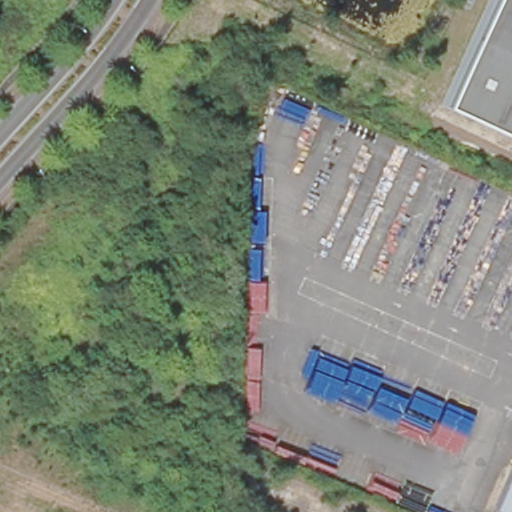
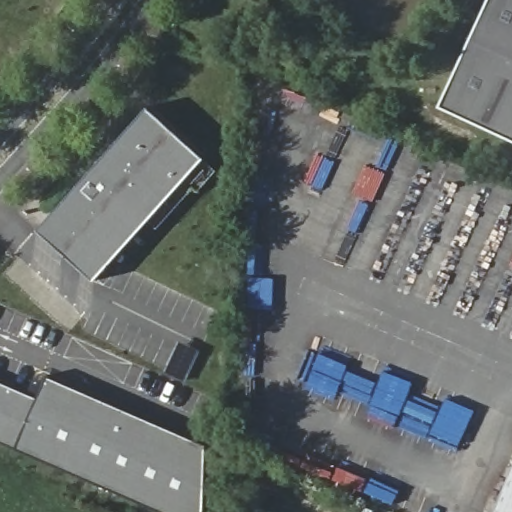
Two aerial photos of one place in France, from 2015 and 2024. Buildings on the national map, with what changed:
unchanged [(501,133),(438,102),(487,0),(512,0),(512,138),(501,133)]
new [(91,283),(34,232),(145,107),(202,158),(91,283)]
new [(195,193),(191,189),(155,230),(146,222),(201,159),(214,172),(195,193)]
new [(36,398),(46,375),(206,446),(204,512),(157,512),(15,449),(36,398)]
new [(0,382),(36,398),(15,449),(0,443),(0,382)]
unchanged [(512,457),(512,512),(511,512),(492,504),(512,457)]

